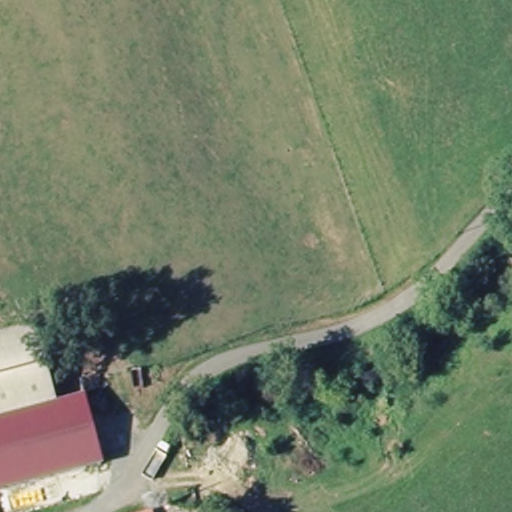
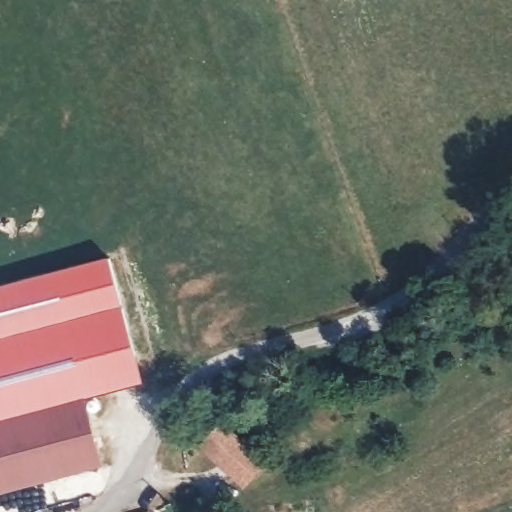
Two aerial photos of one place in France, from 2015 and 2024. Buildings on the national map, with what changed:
new [(55,406),(56,409),(0,426),(0,285),(109,256),(144,383),(84,397),(55,406)]
demolished [(32,331),(55,406),(56,409),(0,426),(0,341),(32,331)]
unchanged [(84,397),(105,461),(0,495),(0,426),(56,409),(55,406),(84,397)]
new [(269,463),(245,490),(197,445),(223,419),(269,463)]
demolished [(226,496),(234,504),(233,512),(195,512),(201,488),(226,496)]
new [(153,510),(153,512),(147,512),(153,510)]

